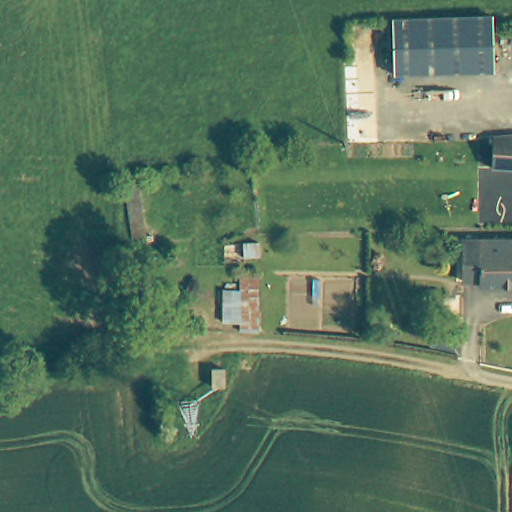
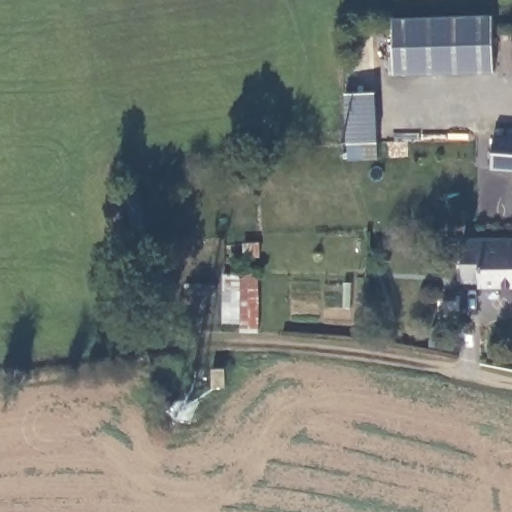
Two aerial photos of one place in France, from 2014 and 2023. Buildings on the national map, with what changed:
unchanged [(388,19),(488,16),(489,71),(389,74),(388,19)]
new [(375,95),(377,143),(377,159),(347,158),(347,143),(344,95),(375,95)]
unchanged [(496,166),(494,131),(512,130),(512,167),(496,166)]
unchanged [(145,239),(128,240),(117,187),(134,183),(145,239)]
unchanged [(479,290),(479,283),(461,283),(459,241),(476,241),(512,241),(512,288),(479,290)]
unchanged [(259,330),(228,329),(228,316),(238,316),(239,274),(260,273),(259,330)]
unchanged [(226,349),(239,349),(239,366),(227,367),(226,349)]

